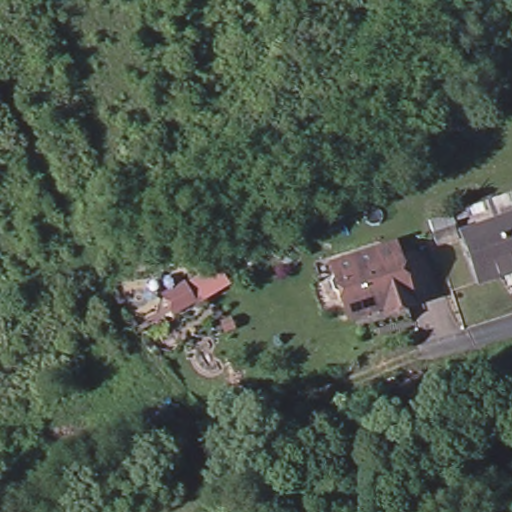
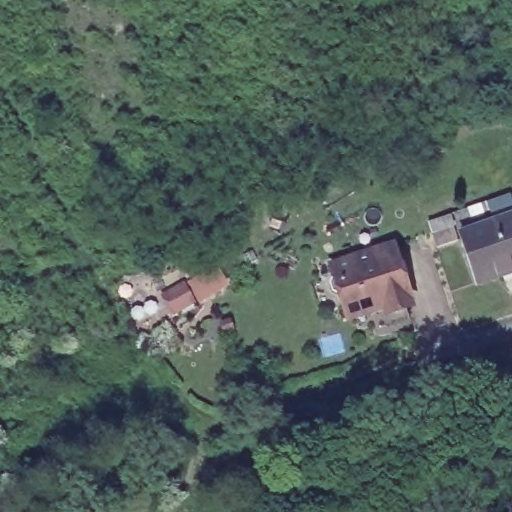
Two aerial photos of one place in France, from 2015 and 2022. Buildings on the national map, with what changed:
unchanged [(485,205),(508,197),(512,206),(512,270),(479,283),(460,235),(492,222),(485,205)]
unchanged [(447,217),(450,227),(430,235),(427,224),(447,217)]
unchanged [(330,276),(326,265),(387,242),(405,292),(400,303),(388,308),(381,304),(346,317),(337,294),(329,292),(325,282),(330,276)]
unchanged [(226,286),(197,302),(195,300),(172,313),(162,292),(182,281),(187,290),(218,271),(226,286)]

